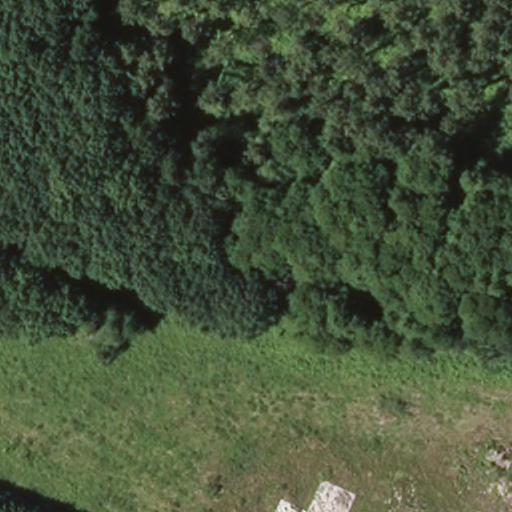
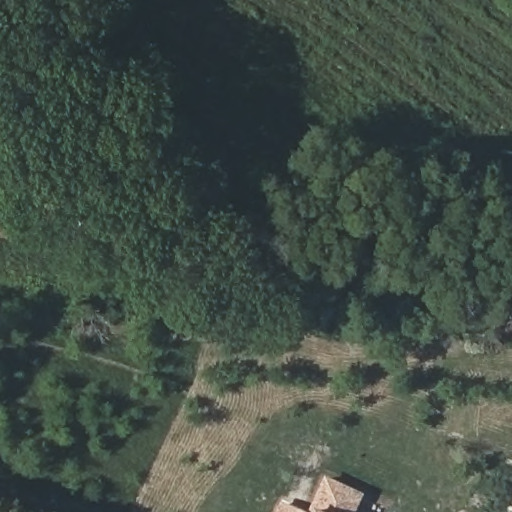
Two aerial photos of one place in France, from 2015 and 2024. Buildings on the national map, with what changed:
new [(357,495),(349,512),(310,512),(324,479),(357,495)]

